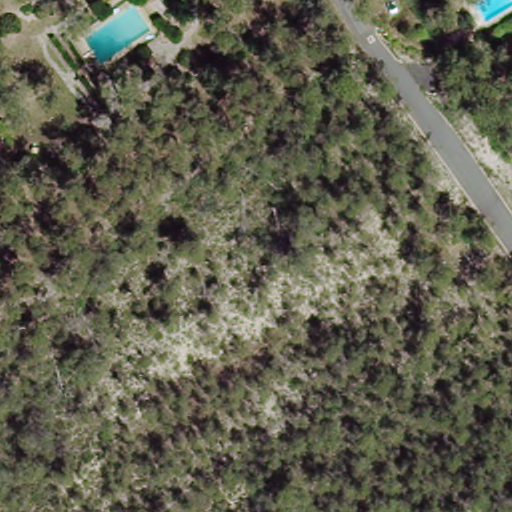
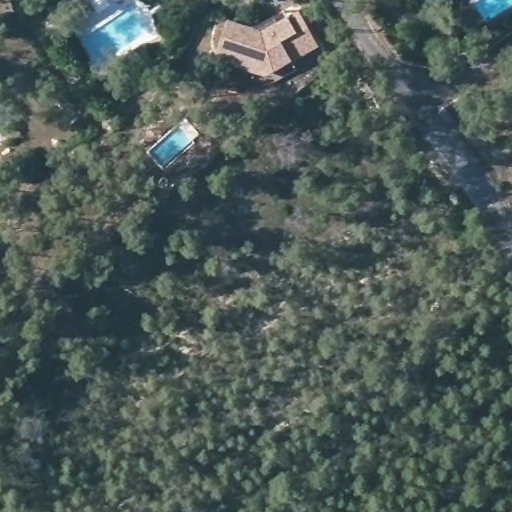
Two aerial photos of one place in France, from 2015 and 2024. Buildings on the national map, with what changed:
new [(223,23),(247,30),(264,20),(268,27),(296,11),(316,46),(270,71),(213,55),(223,23)]

